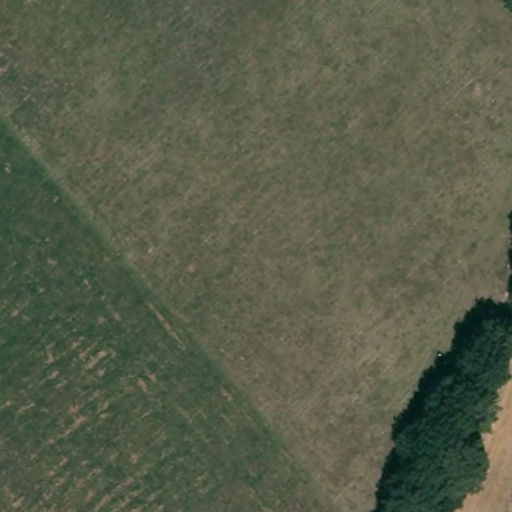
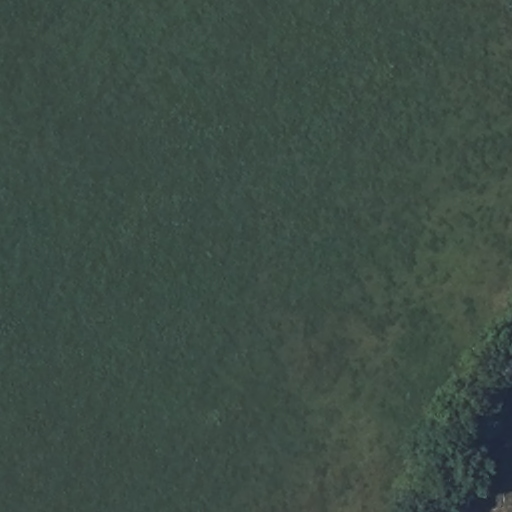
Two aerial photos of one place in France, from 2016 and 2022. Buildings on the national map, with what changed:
[]

